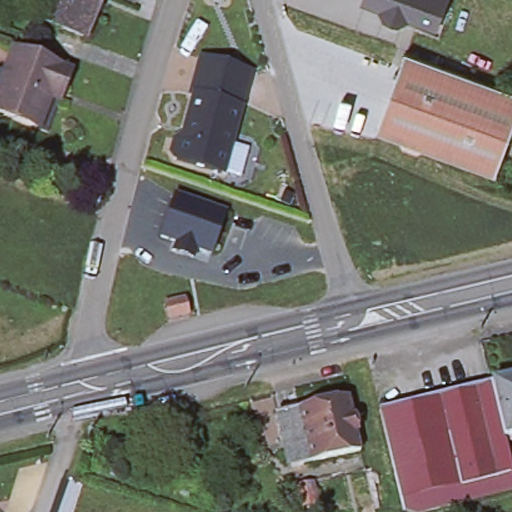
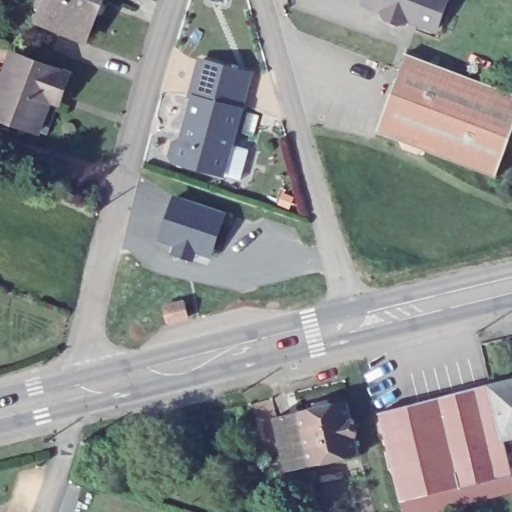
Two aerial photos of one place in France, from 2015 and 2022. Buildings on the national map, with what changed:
unchanged [(37,0),(102,0),(85,40),(40,21),(45,8),(35,5),(37,0)]
unchanged [(412,19),(411,22),(405,24),(390,18),(386,12),(388,9),(370,3),(372,0),(453,0),(451,5),(441,30),(412,19)]
unchanged [(13,53),(70,74),(47,135),(0,117),(0,71),(6,74),(13,53)]
unchanged [(406,54),(512,94),(512,129),(395,84),(406,54)]
unchanged [(195,97),(191,97),(196,81),(201,60),(250,74),(243,99),(241,109),(223,175),(176,161),(172,155),(176,142),(182,139),(188,140),(191,127),(187,126),(195,97)]
unchanged [(512,129),(512,136),(503,160),(383,114),(395,84),(512,129)]
unchanged [(496,179),(426,152),(417,157),(402,152),(399,142),(376,134),(383,114),(503,160),(496,179)]
unchanged [(228,212),(212,257),(196,252),(193,261),(170,254),(173,245),(159,240),(175,194),(228,212)]
unchanged [(188,302),(192,316),(171,322),(167,307),(188,302)]
unchanged [(512,380),(512,437),(504,439),(490,385),(512,380)]
unchanged [(490,385),(504,439),(512,470),(512,488),(466,501),(467,503),(436,512),(409,512),(405,511),(380,412),(490,383),(490,385)]
unchanged [(347,401),(352,420),(355,420),(358,434),(355,435),(360,455),(292,469),(286,443),(283,444),(276,417),(347,401)]

